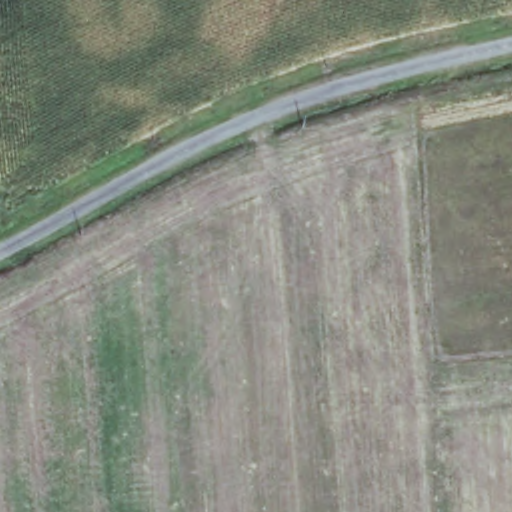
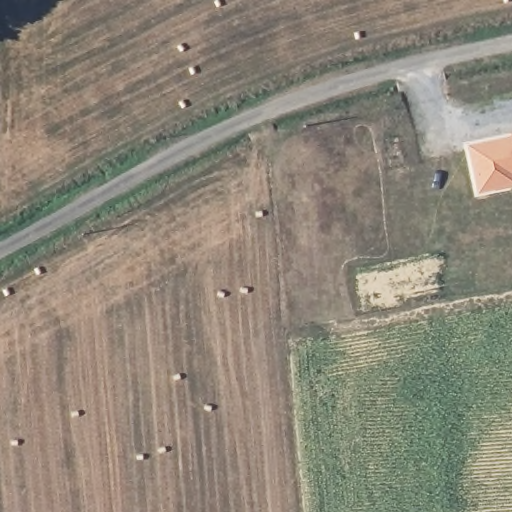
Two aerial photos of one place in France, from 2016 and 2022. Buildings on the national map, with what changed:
new [(466,145),(510,136),(510,134),(512,133),(512,188),(477,195),(466,145)]

